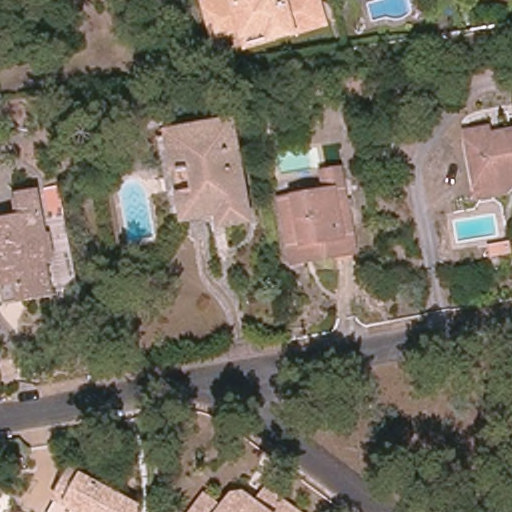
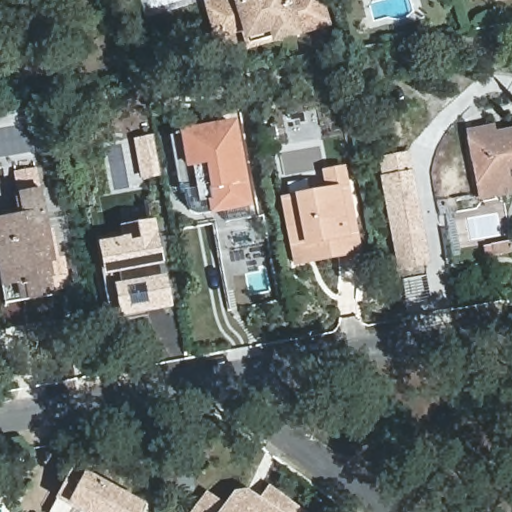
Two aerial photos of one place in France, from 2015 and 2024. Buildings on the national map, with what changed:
unchanged [(242,31),(214,39),(208,14),(206,8),(224,3),(224,0),(296,0),(296,2),(303,0),(315,0),(323,28),(272,42),(247,49),(244,39),(242,31)]
unchanged [(478,193),(465,127),(486,123),(490,136),(506,133),(512,132),(512,186),(478,193)]
unchanged [(169,136),(230,124),(246,217),(221,221),(218,207),(184,214),(169,136)]
new [(161,177),(140,181),(132,140),(154,136),(161,177)]
unchanged [(294,245),(285,200),(323,193),(320,172),(340,168),(344,190),(354,252),(325,257),(298,263),(294,245)]
new [(430,266),(398,272),(380,177),(414,170),(430,266)]
unchanged [(0,215),(22,212),(18,191),(41,186),(53,258),(49,259),(56,292),(27,298),(5,303),(0,273),(0,215)]
new [(120,238),(120,227),(153,220),(162,265),(156,266),(159,278),(163,277),(169,311),(108,322),(94,243),(120,238)]
unchanged [(56,493),(69,466),(80,472),(138,501),(140,512),(50,512),(47,511),(56,493)]
unchanged [(208,489),(225,503),(228,499),(236,489),(247,487),(256,495),(260,497),(270,484),(308,512),(193,512),(191,511),(208,489)]

